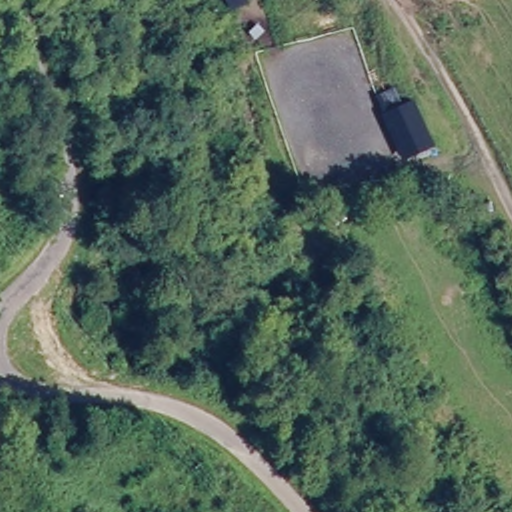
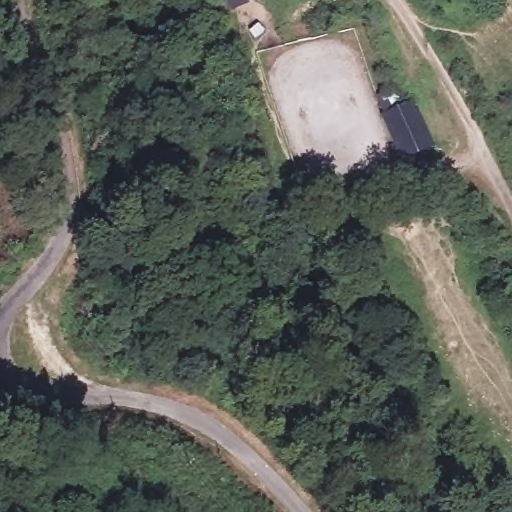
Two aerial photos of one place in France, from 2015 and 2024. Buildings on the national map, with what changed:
unchanged [(396,85),(403,103),(415,99),(436,147),(403,162),(375,93),(396,85)]

